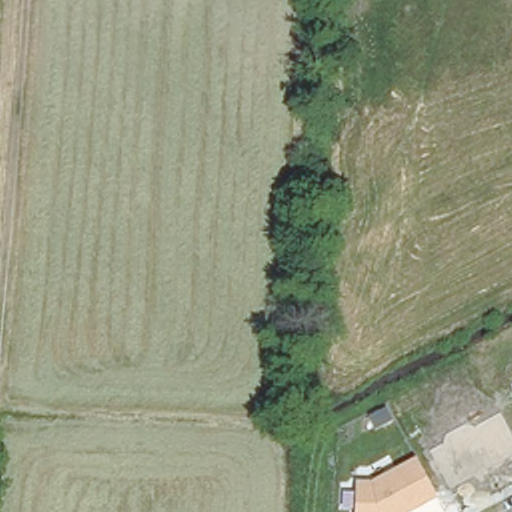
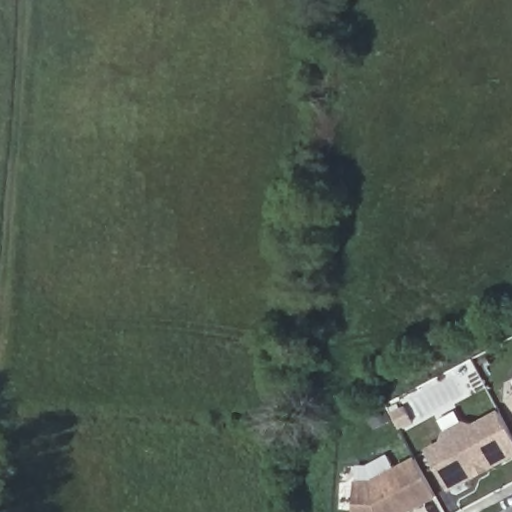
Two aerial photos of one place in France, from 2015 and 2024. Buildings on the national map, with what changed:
unchanged [(512,395),(512,406),(507,397),(512,395)]
new [(423,451),(436,443),(439,435),(459,424),(468,427),(495,412),(512,443),(512,453),(444,490),(423,451)]
unchanged [(353,483),(354,468),(365,469),(385,458),(392,471),(411,460),(434,501),(413,512),(351,512),(353,483)]

